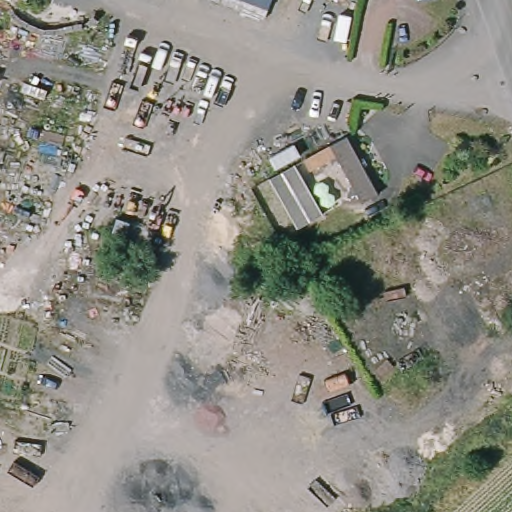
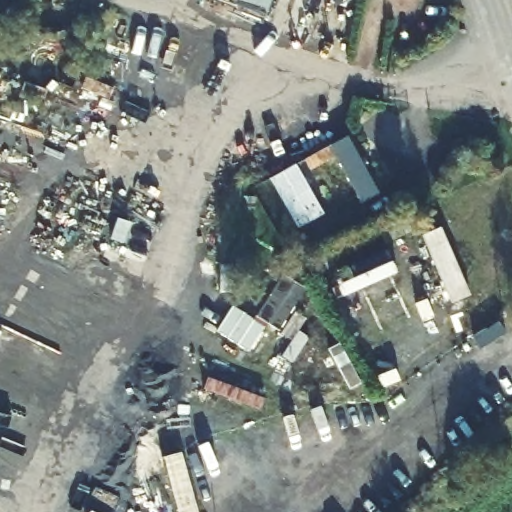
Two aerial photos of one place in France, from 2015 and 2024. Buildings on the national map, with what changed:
unchanged [(347,134),(379,191),(363,200),(336,154),(310,169),(304,159),(296,164),(323,212),(298,227),(270,178),(296,163),(347,134)]

